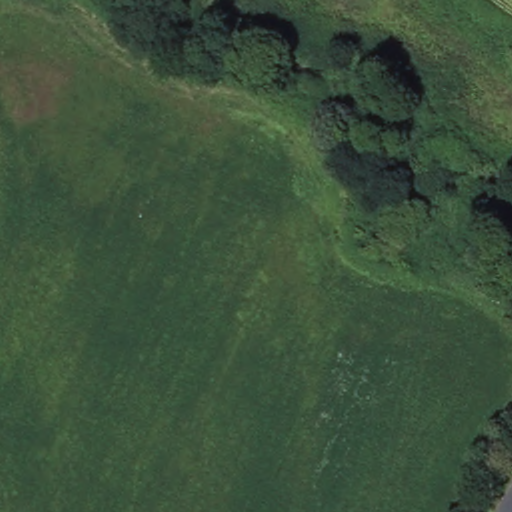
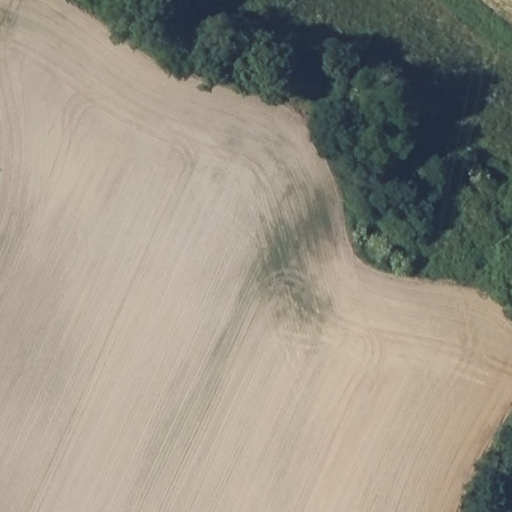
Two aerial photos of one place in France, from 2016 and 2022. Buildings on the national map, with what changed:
[]

